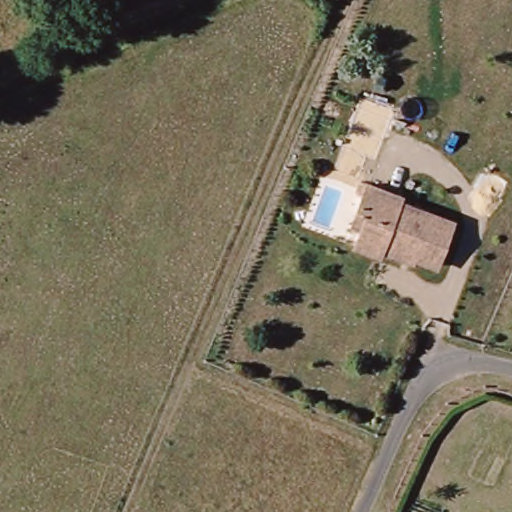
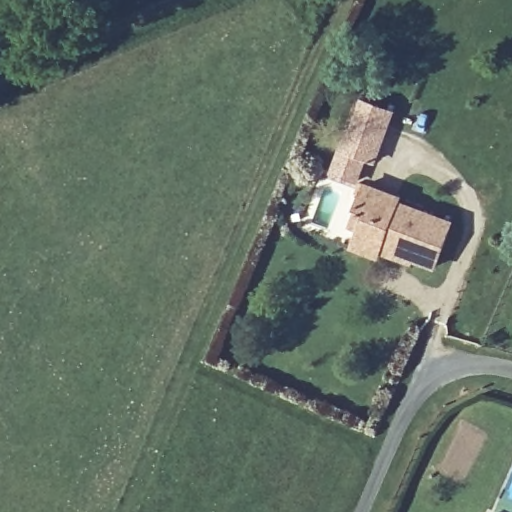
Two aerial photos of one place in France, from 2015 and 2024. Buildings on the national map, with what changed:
new [(359,96),(396,111),(376,166),(367,162),(358,184),(330,172),(359,96)]
unchanged [(376,251),(374,254),(352,246),(358,227),(349,223),(355,209),(365,184),(398,197),(394,202),(448,224),(432,265),(409,256),(408,263),(376,251)]

